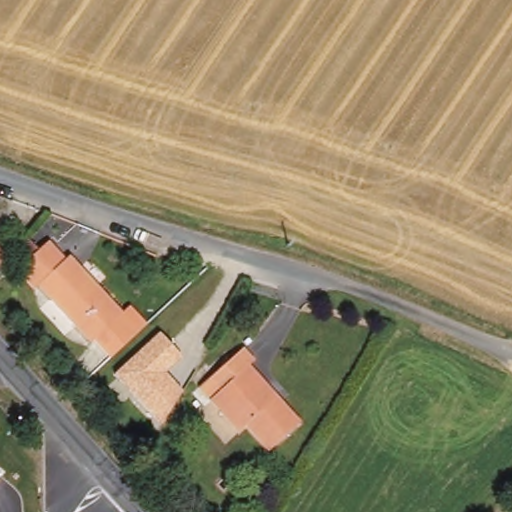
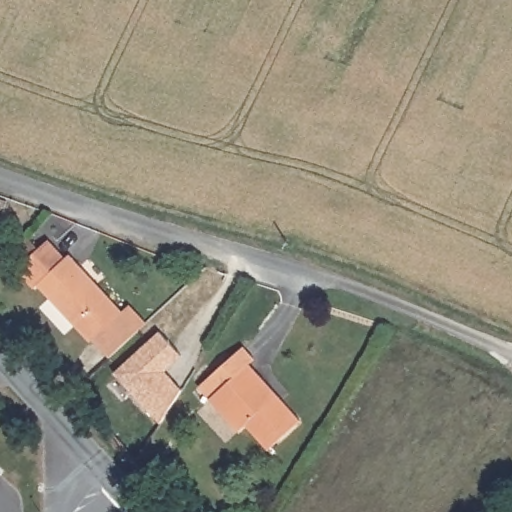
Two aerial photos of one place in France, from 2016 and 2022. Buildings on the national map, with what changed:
unchanged [(12,251),(27,265),(22,270),(7,288),(0,281),(0,261),(6,255),(7,257),(12,251)]
unchanged [(105,357),(52,301),(49,304),(31,285),(40,277),(30,266),(43,253),(53,264),(63,255),(81,274),(84,271),(137,328),(105,357)]
unchanged [(116,374),(160,332),(182,357),(166,373),(182,392),(161,425),(116,374)]
unchanged [(268,451),(245,426),(238,432),(209,400),(198,388),(209,378),(243,347),(255,360),(249,365),(300,422),(268,451)]

